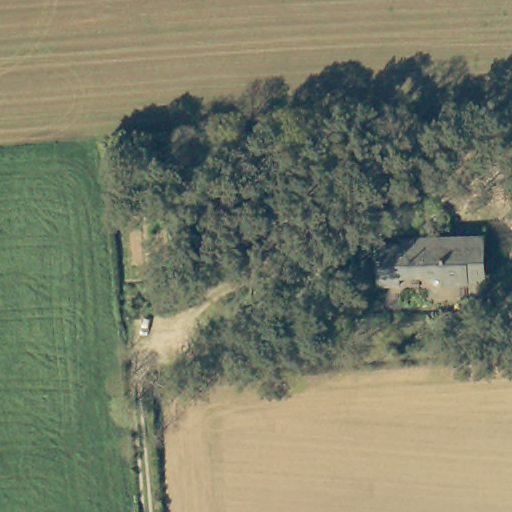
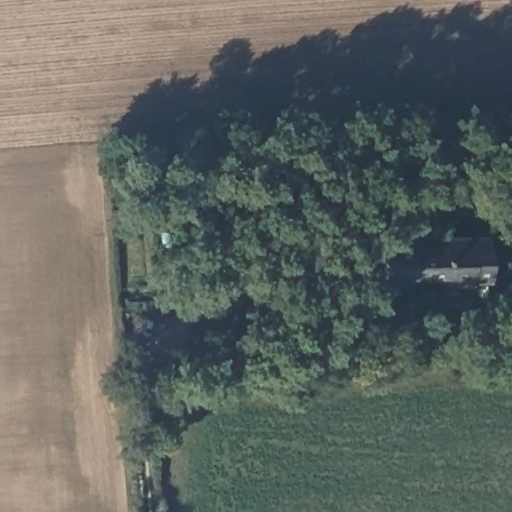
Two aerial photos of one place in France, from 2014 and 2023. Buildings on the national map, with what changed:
unchanged [(486,275),(480,275),(480,295),(429,295),(428,273),(403,275),(403,282),(380,283),(379,242),(405,242),(405,235),(485,234),(486,275)]

